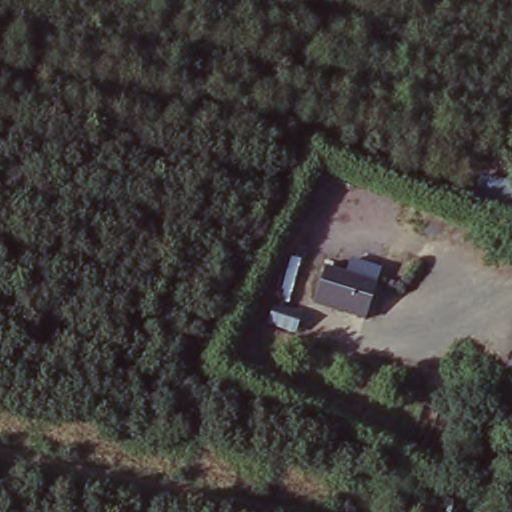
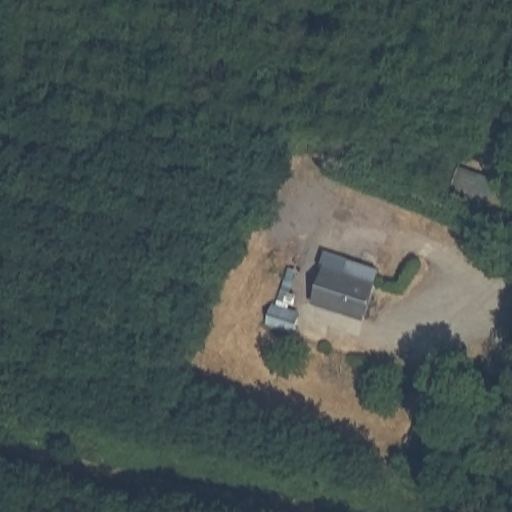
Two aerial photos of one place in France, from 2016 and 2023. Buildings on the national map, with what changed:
unchanged [(326,267),(376,287),(365,322),(313,306),(326,267)]

